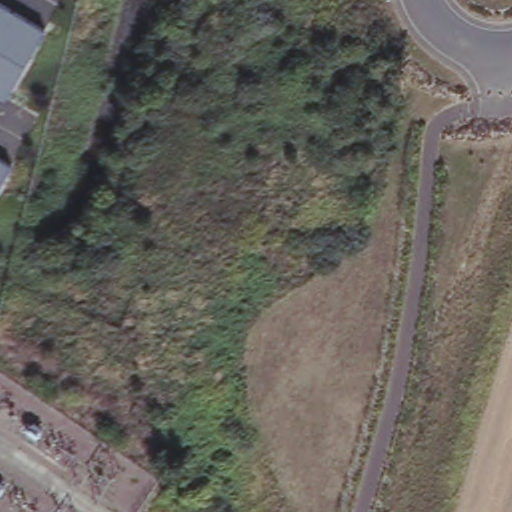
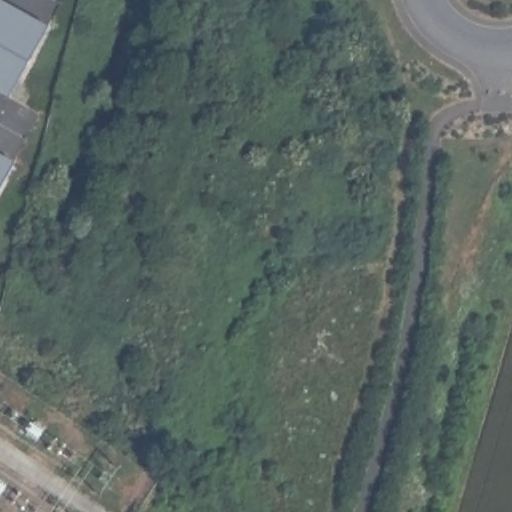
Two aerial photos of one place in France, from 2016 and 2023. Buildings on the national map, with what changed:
unchanged [(8,96),(0,91),(0,5),(43,29),(8,96)]
unchanged [(0,185),(0,158),(11,164),(0,185)]

